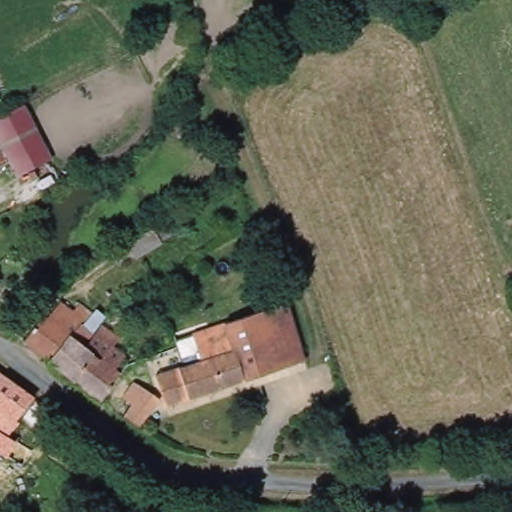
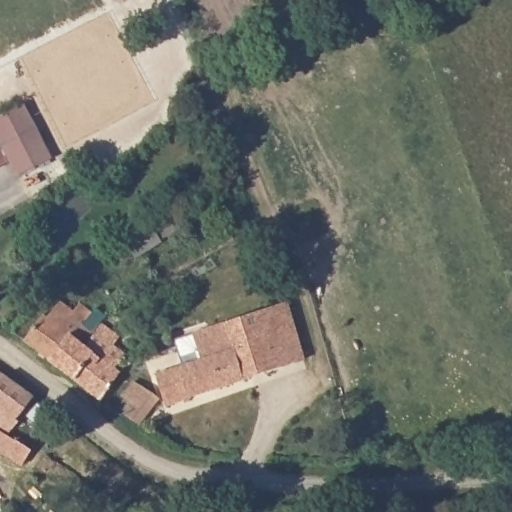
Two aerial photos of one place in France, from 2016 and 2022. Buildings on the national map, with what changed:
unchanged [(11,163),(0,168),(0,115),(28,101),(54,160),(19,176),(11,163)]
unchanged [(154,220),(162,236),(132,251),(124,236),(154,220)]
unchanged [(292,299),(310,357),(174,405),(163,375),(209,359),(200,332),(292,299)]
unchanged [(46,323),(58,306),(71,315),(77,305),(92,315),(80,329),(89,336),(82,346),(70,337),(50,364),(22,343),(39,319),(46,323)]
unchanged [(70,337),(82,346),(87,350),(102,330),(120,342),(112,352),(124,360),(114,373),(121,377),(102,405),(50,364),(70,337)]
unchanged [(33,398),(17,419),(23,424),(12,438),(19,443),(8,458),(0,452),(0,374),(33,398)]
unchanged [(127,393),(137,379),(165,397),(148,422),(132,412),(140,402),(127,393)]
unchanged [(256,508),(255,512),(245,512),(248,505),(256,508)]

